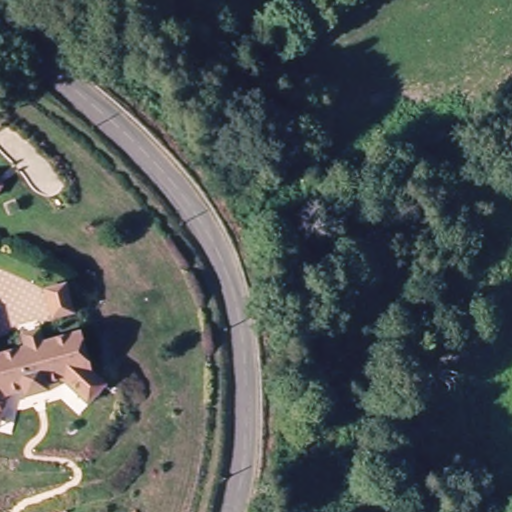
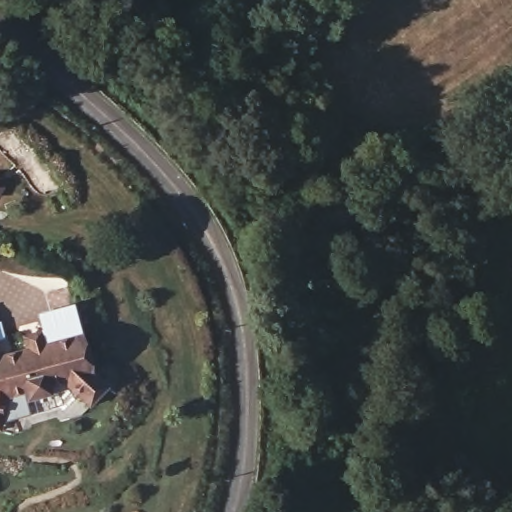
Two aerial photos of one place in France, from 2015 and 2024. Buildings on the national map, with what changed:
unchanged [(77,298),(85,326),(65,331),(57,305),(77,298)]
unchanged [(23,348),(19,336),(39,332),(42,344),(79,337),(84,365),(97,381),(105,387),(86,405),(78,397),(62,380),(43,383),(45,392),(25,399),(23,390),(7,395),(2,420),(0,426),(0,354),(23,348)]

